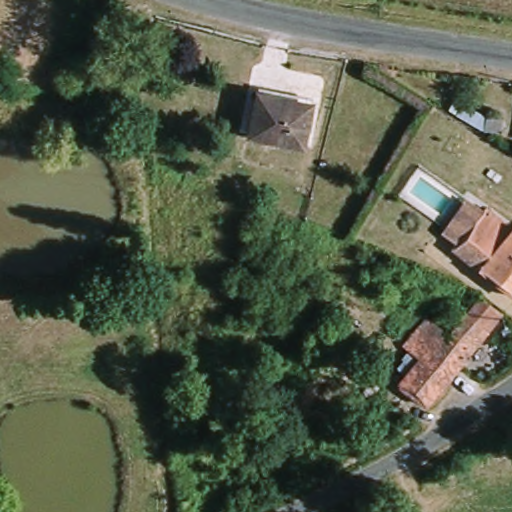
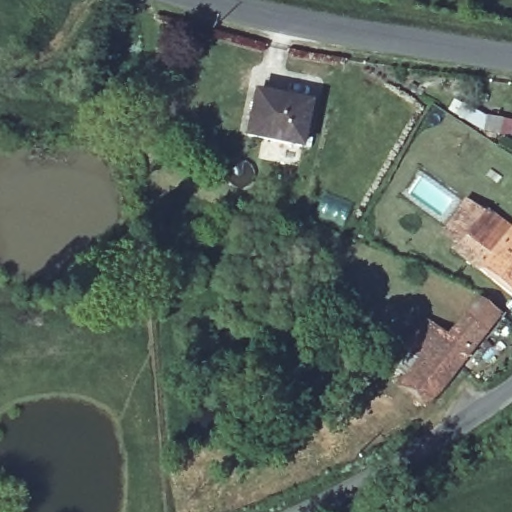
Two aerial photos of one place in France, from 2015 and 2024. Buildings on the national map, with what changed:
unchanged [(257,87),(311,97),(302,144),(247,133),(257,87)]
unchanged [(504,109),(502,127),(477,123),(478,105),(504,109)]
unchanged [(484,208),(509,229),(512,225),(512,293),(453,246),(484,208)]
unchanged [(483,295),(506,316),(430,404),(390,371),(432,319),(450,333),(483,295)]

